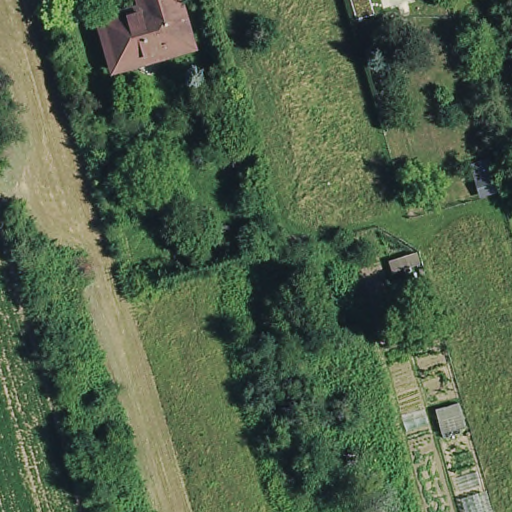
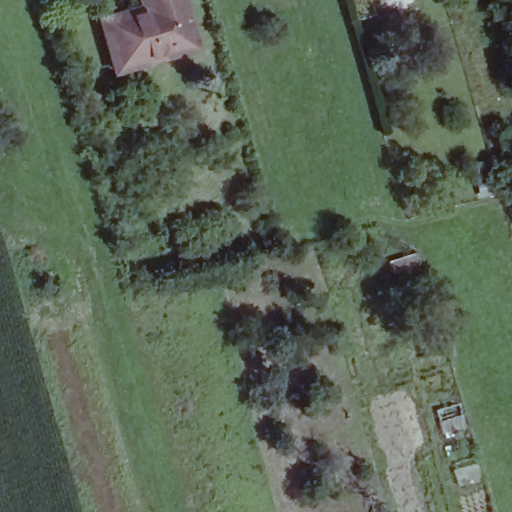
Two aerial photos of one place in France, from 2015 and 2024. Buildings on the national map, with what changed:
unchanged [(110,76),(95,17),(133,0),(184,0),(198,50),(110,76)]

